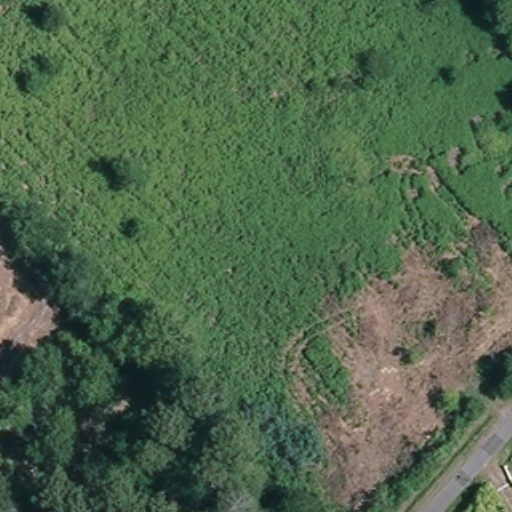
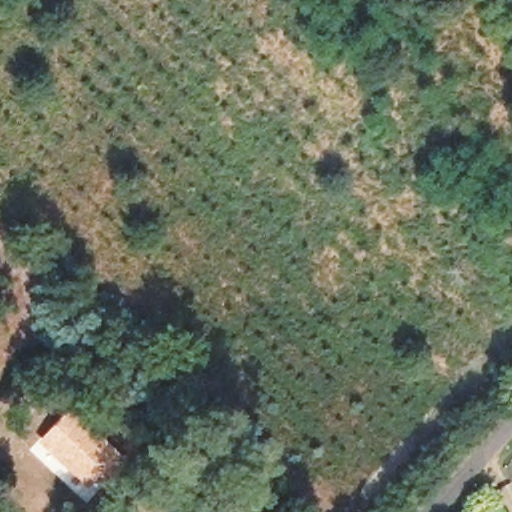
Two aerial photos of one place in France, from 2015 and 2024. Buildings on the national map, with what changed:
new [(129,459),(96,492),(38,440),(73,406),(129,459)]

